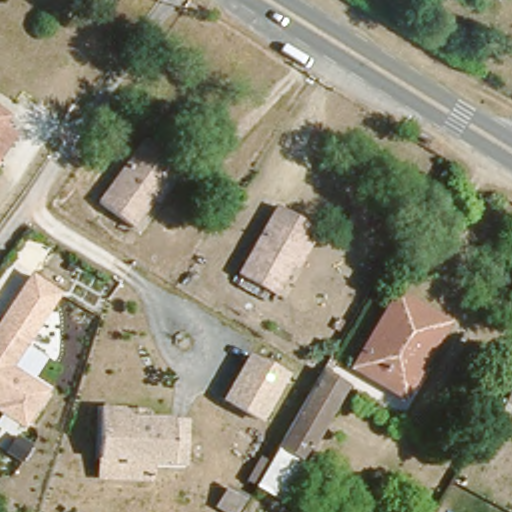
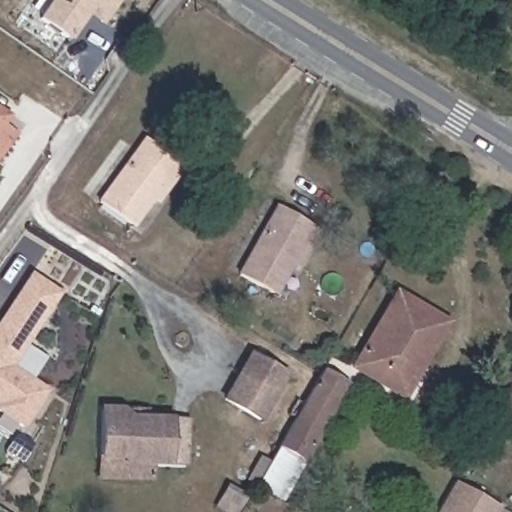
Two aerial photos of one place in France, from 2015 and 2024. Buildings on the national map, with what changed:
new [(87,15),(68,43),(35,19),(48,0),(122,0),(103,26),(87,15)]
unchanged [(0,110),(6,114),(0,124),(0,110)]
unchanged [(0,152),(0,125),(12,134),(0,152)]
unchanged [(152,195),(134,221),(100,195),(148,132),(186,161),(177,173),(157,199),(152,195)]
unchanged [(292,260),(275,290),(240,270),(280,201),(320,224),(311,239),(298,263),(292,260)]
unchanged [(62,292),(24,340),(0,325),(0,315),(30,273),(62,292)]
unchanged [(358,361),(400,291),(439,316),(448,321),(422,366),(408,391),(358,361)]
unchanged [(7,365),(45,389),(21,426),(0,412),(0,325),(24,340),(7,365)]
unchanged [(286,376),(260,419),(226,399),(252,354),(286,376)]
unchanged [(295,455),(278,445),(311,389),(315,383),(317,379),(324,367),(340,378),(347,382),(338,398),(301,459),(295,455)]
unchanged [(121,406),(147,406),(147,414),(171,414),(189,415),(187,466),(170,466),(154,465),(151,483),(95,481),(95,461),(98,405),(121,406)]
unchanged [(256,482),(278,445),(295,455),(301,459),(280,496),(273,492),(256,482)]
new [(454,482),(500,509),(498,512),(437,512),(454,482)]

